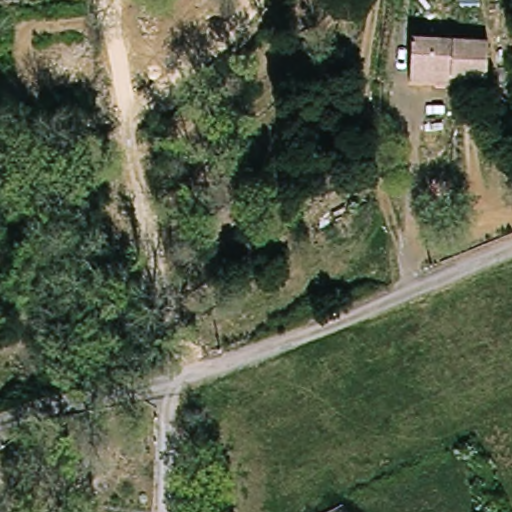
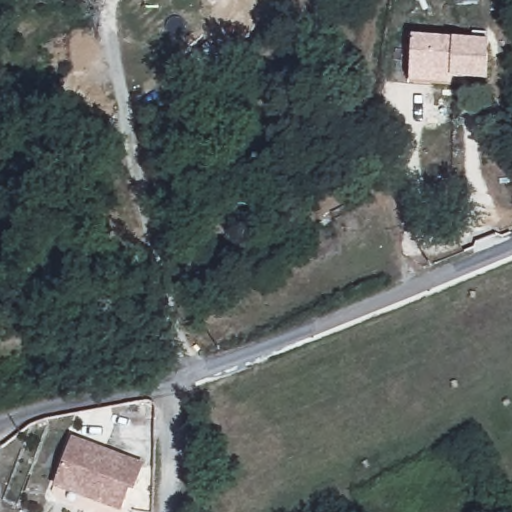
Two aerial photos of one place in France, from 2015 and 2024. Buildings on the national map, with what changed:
unchanged [(409,84),(409,70),(409,32),(492,42),(492,82),(451,76),(450,89),(409,84)]
new [(62,440),(109,457),(108,459),(135,475),(126,497),(121,495),(115,512),(108,512),(46,484),(60,447),(62,440)]

